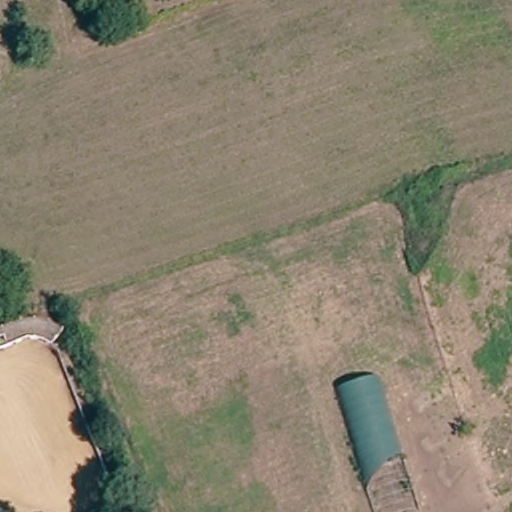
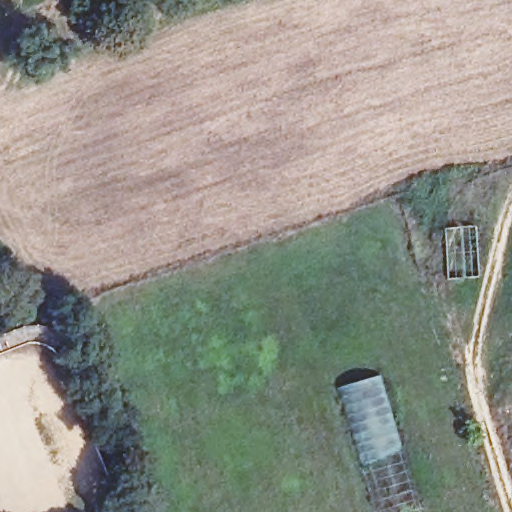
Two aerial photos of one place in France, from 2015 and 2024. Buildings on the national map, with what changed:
unchanged [(0,333),(20,325),(34,324),(48,326),(60,334),(52,348),(44,342),(35,340),(27,339),(0,350),(0,333)]
unchanged [(393,512),(376,512),(341,384),(375,374),(413,506),(393,512)]
unchanged [(96,511),(98,512),(96,512),(96,511)]

